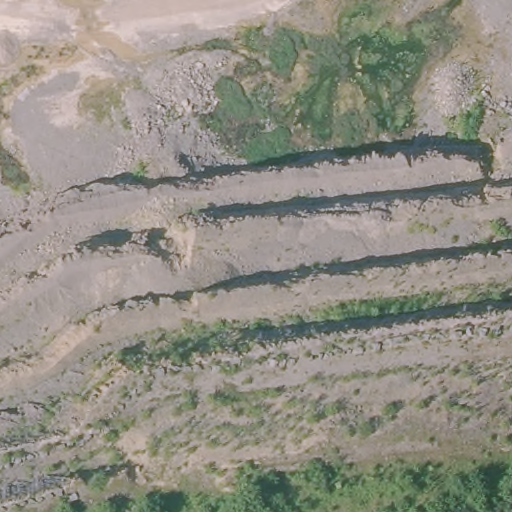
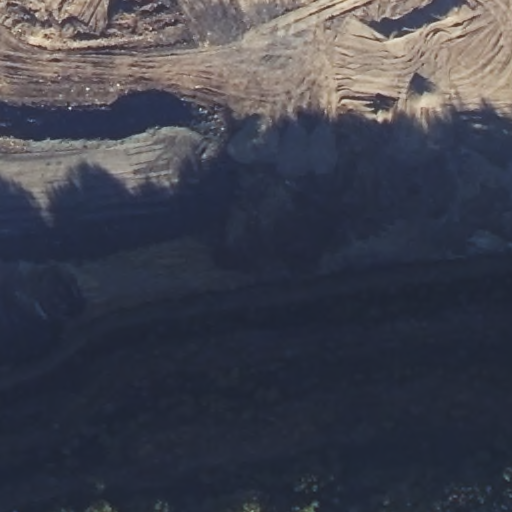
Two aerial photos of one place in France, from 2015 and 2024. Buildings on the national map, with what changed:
[]

